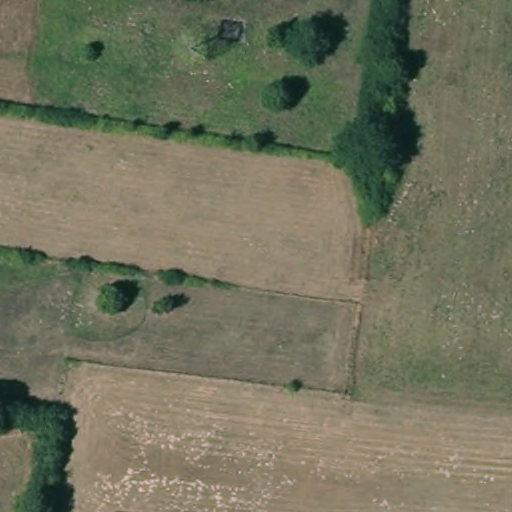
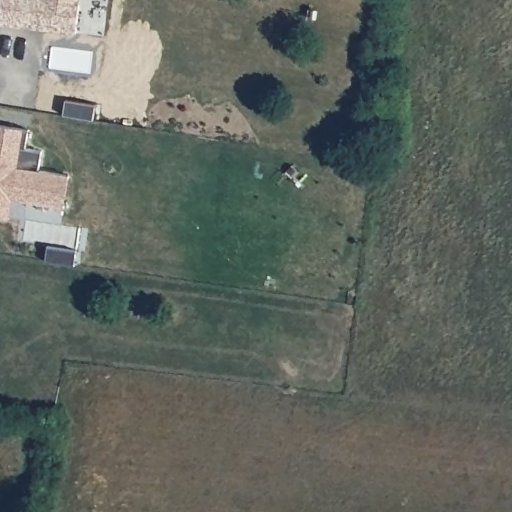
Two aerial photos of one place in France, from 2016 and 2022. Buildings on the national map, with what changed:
new [(79,0),(75,33),(44,29),(19,26),(0,24),(0,0),(79,0)]
new [(0,217),(0,125),(27,129),(24,147),(40,149),(37,169),(61,172),(68,174),(64,205),(56,204),(11,198),(9,218),(0,217)]

